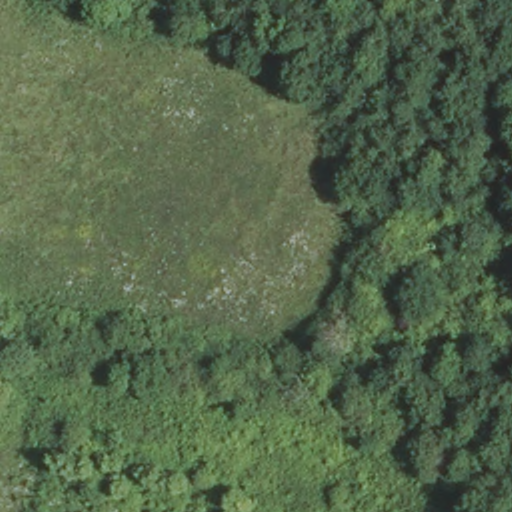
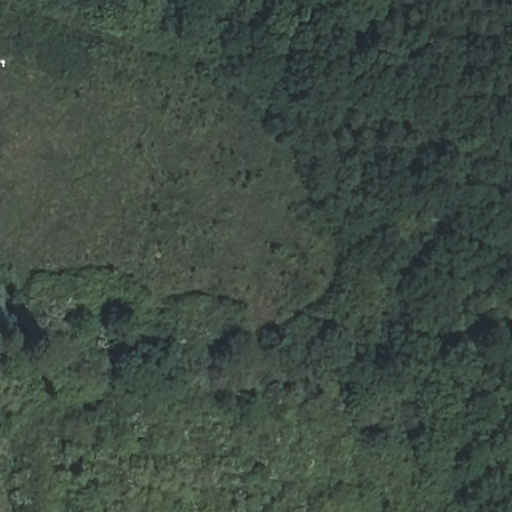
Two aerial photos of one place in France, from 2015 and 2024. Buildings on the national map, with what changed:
[]

